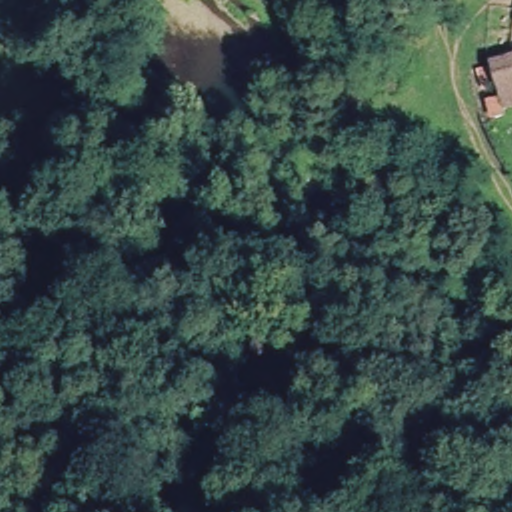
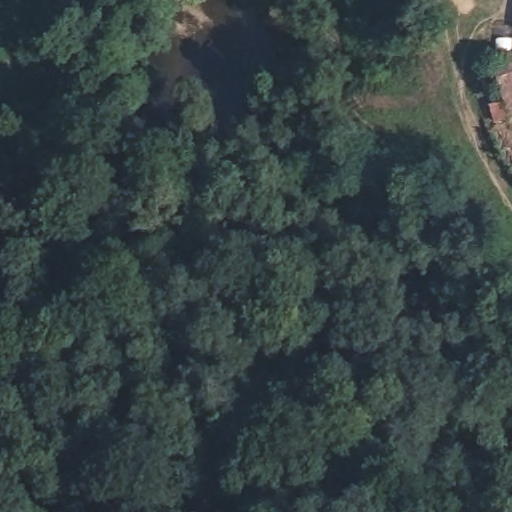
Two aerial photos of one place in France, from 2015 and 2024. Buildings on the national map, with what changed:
unchanged [(512,110),(500,112),(501,118),(488,122),(483,104),(495,101),(491,84),(490,69),(512,58),(512,110)]

